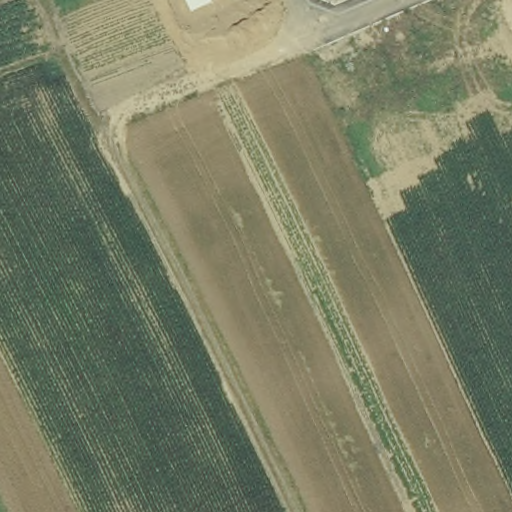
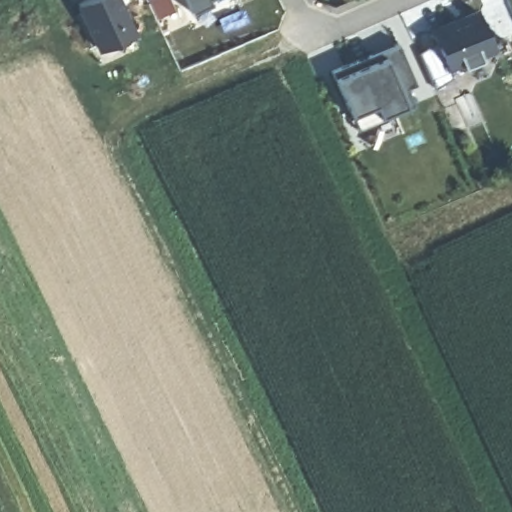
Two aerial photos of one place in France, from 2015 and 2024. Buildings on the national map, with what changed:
new [(119,0),(134,33),(96,49),(75,3),(81,0),(119,0)]
unchanged [(191,13),(185,0),(210,0),(211,3),(191,13)]
new [(481,57),(463,64),(449,69),(431,29),(476,10),(495,49),(481,57)]
new [(414,82),(404,85),(413,105),(359,128),(352,113),(335,77),(384,55),(381,49),(398,43),(414,82)]

